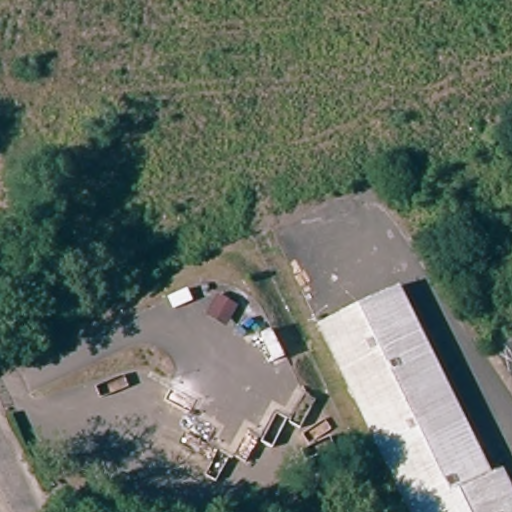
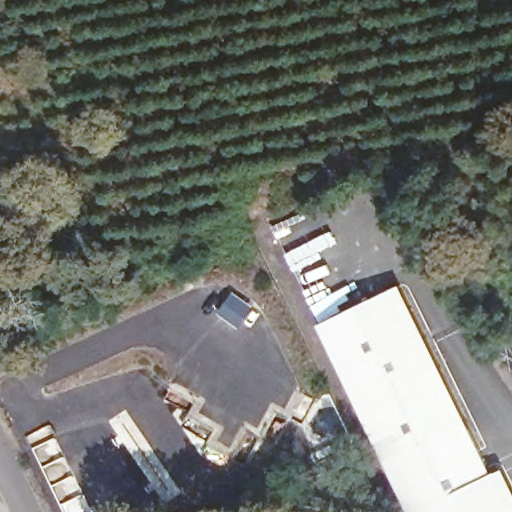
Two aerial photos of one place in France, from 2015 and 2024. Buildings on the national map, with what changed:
unchanged [(393,283),(485,467),(493,464),(512,500),(512,512),(409,512),(314,322),(393,283)]
unchanged [(213,290),(238,299),(230,320),(204,311),(213,290)]

